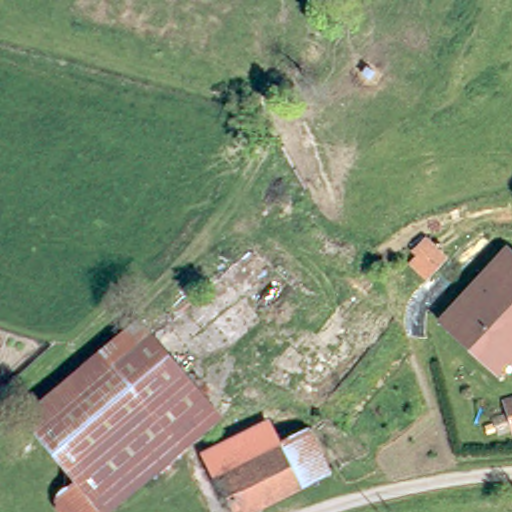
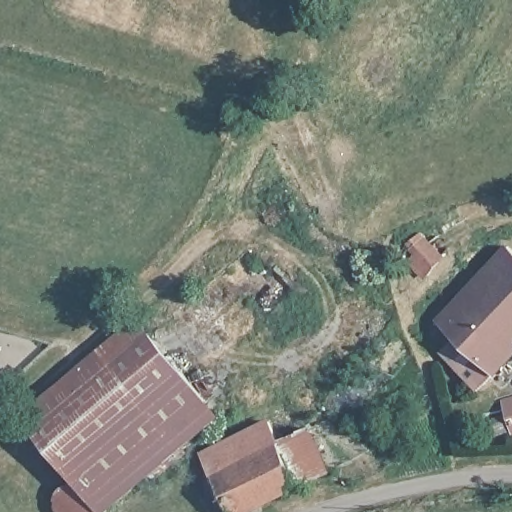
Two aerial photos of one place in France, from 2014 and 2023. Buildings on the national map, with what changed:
unchanged [(427,246),(437,255),(444,260),(427,280),(420,275),(410,266),(427,246)]
unchanged [(464,342),(440,320),(496,257),(505,247),(512,254),(512,356),(497,373),(464,342)]
unchanged [(179,440),(184,445),(152,471),(147,466),(102,505),(72,508),(66,508),(61,506),(56,502),(53,498),(51,492),(51,486),(52,481),(55,476),(60,472),(72,468),(31,420),(142,322),(215,408),(179,440)]
unchanged [(497,433),(492,418),(507,415),(504,403),(512,401),(512,432),(511,432),(510,430),(497,433)]
unchanged [(225,438),(270,415),(281,438),(312,423),(334,469),(245,512),(237,512),(218,473),(238,463),(225,438)]

